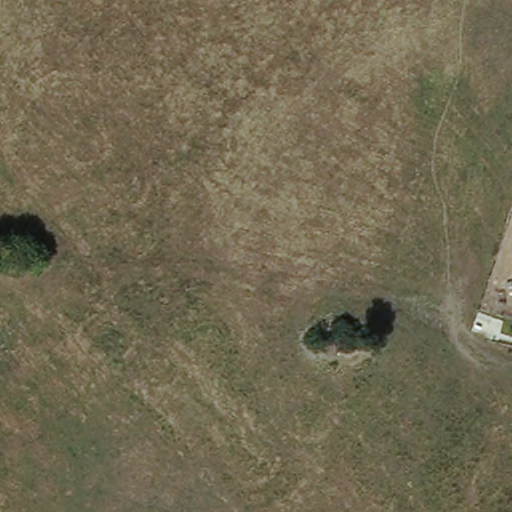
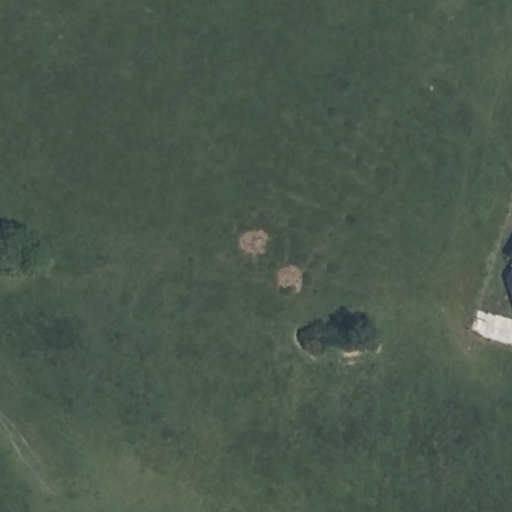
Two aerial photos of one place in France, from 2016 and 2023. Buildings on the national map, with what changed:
unchanged [(507,270),(512,262),(512,284),(507,270)]

